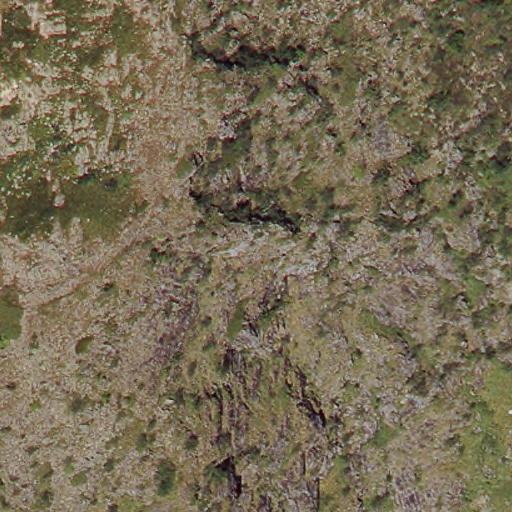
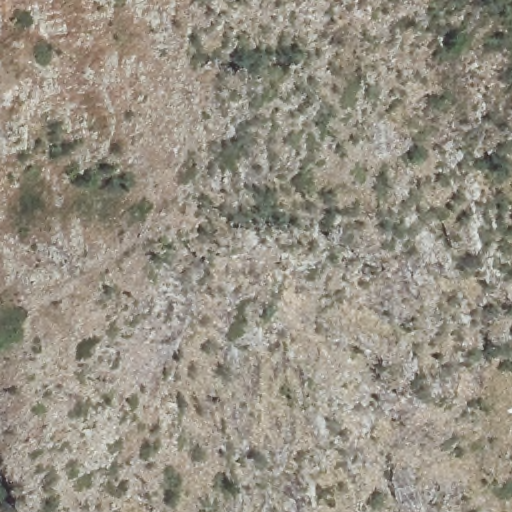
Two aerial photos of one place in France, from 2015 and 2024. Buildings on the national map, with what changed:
unchanged [(20,69),(21,81),(5,82),(1,70),(20,69)]

